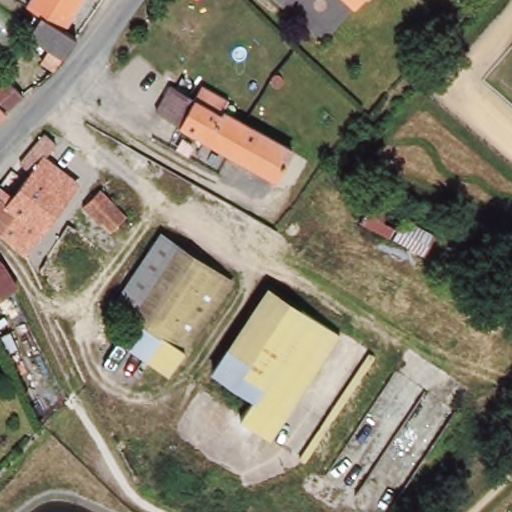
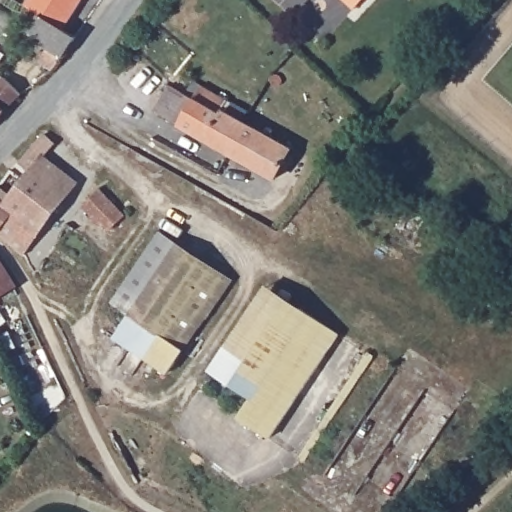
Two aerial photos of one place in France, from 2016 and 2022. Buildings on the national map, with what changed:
unchanged [(64,31),(40,16),(26,8),(31,0),(84,0),(64,31)]
unchanged [(356,11),(344,0),(367,0),(356,11)]
unchanged [(51,67),(44,64),(51,49),(29,38),(40,16),(64,31),(76,38),(59,71),(51,67)]
unchanged [(10,87),(15,82),(28,93),(14,108),(9,103),(0,114),(0,80),(1,78),(10,87)]
unchanged [(295,152),(273,182),(157,111),(173,84),(185,91),(186,92),(198,98),(205,86),(235,104),(232,110),(252,122),(279,141),(295,152)]
unchanged [(52,120),(65,130),(45,155),(57,166),(34,194),(20,183),(27,174),(16,165),(32,144),(33,145),(52,120)]
unchanged [(78,181),(49,219),(27,202),(34,194),(57,166),(78,181)]
unchanged [(0,241),(0,179),(6,172),(20,183),(34,194),(27,202),(49,219),(23,255),(21,258),(0,241)]
unchanged [(131,205),(113,230),(100,220),(95,226),(79,212),(102,183),(131,205)]
unchanged [(385,210),(432,232),(421,255),(355,222),(365,201),(385,210)]
unchanged [(234,283),(182,355),(132,319),(111,304),(163,231),(234,283)]
unchanged [(19,293),(0,302),(0,258),(3,260),(19,293)]
unchanged [(340,338),(271,439),(242,420),(255,400),(215,373),(271,292),(340,338)]
unchanged [(182,355),(165,378),(115,342),(132,319),(182,355)]

